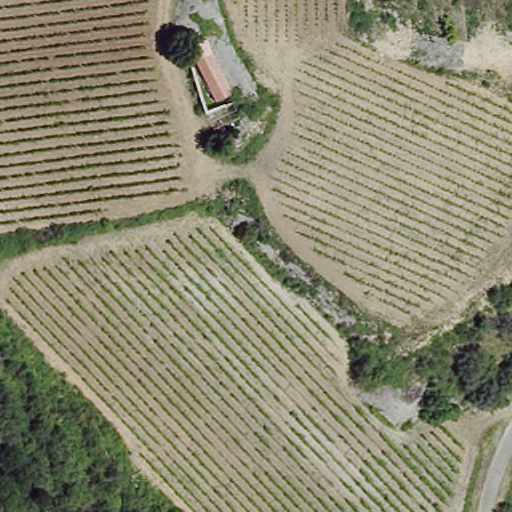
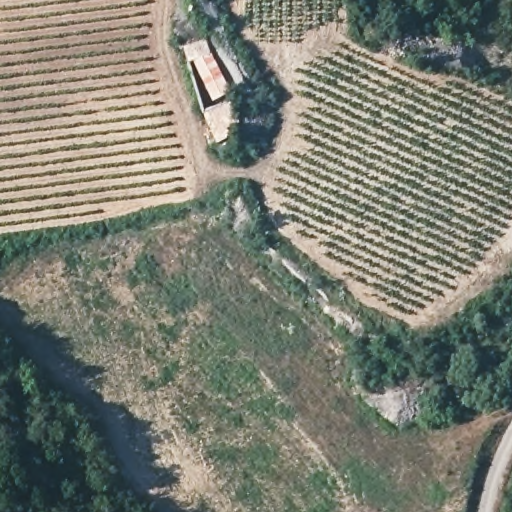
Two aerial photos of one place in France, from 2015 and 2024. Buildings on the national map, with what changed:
unchanged [(191,48),(207,40),(232,93),(216,101),(191,48)]

